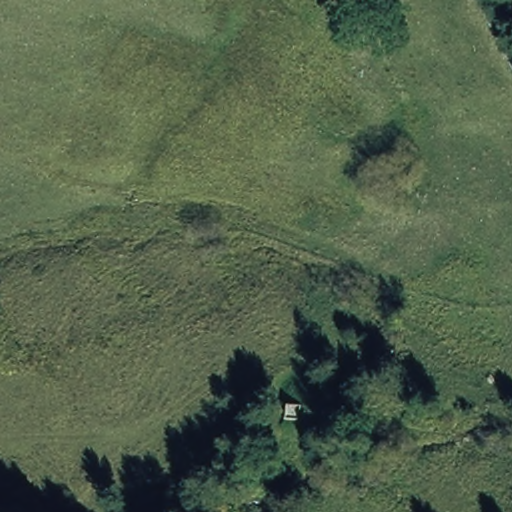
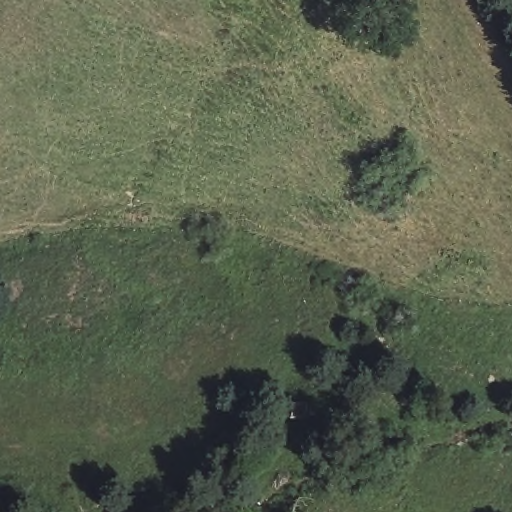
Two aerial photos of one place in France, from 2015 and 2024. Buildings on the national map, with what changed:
[]

